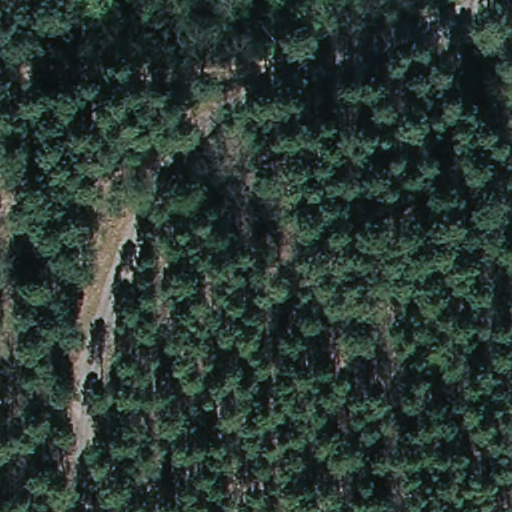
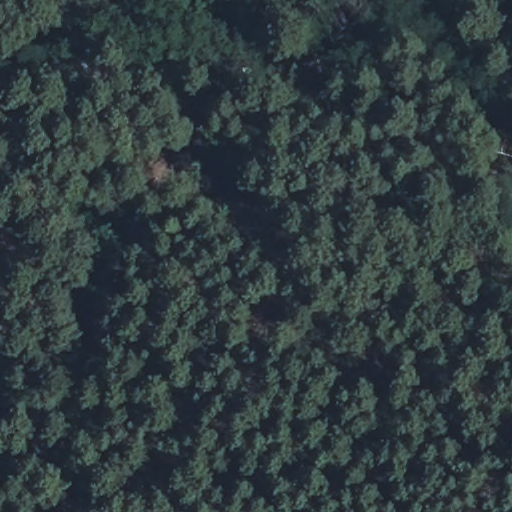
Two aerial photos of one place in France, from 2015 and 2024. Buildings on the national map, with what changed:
[]

